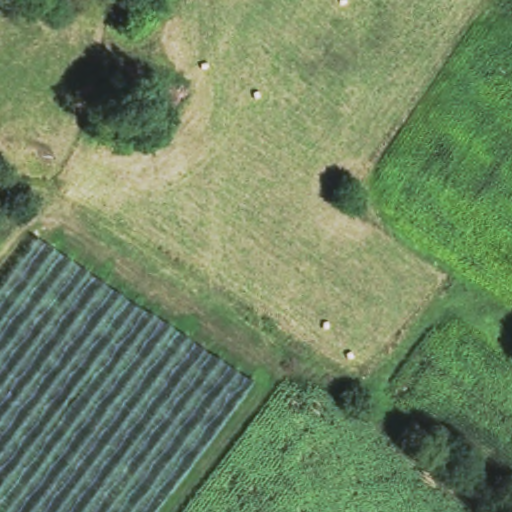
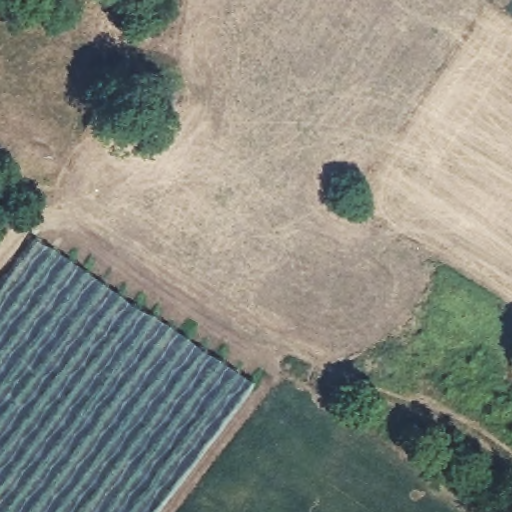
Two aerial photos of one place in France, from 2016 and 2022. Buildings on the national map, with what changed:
unchanged [(115,0),(136,0),(125,22),(107,13),(113,4),(115,0)]

